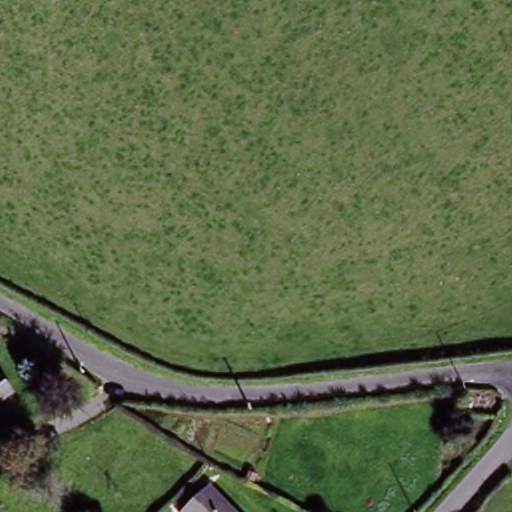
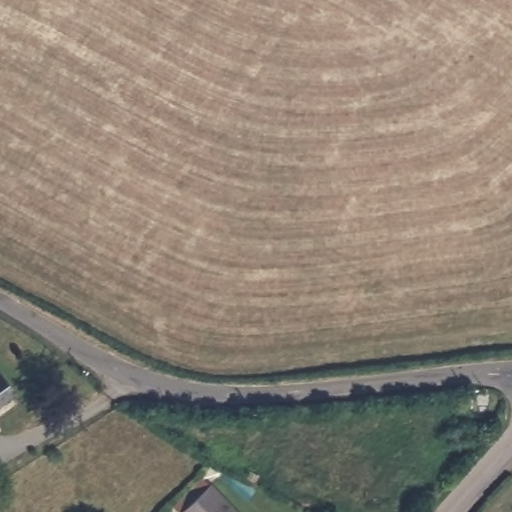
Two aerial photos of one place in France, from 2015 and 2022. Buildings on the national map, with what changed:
unchanged [(29,358),(21,352),(27,344),(35,350),(29,358)]
unchanged [(3,389),(0,391),(0,385),(3,389)]
unchanged [(204,484),(218,495),(238,512),(180,512),(204,484)]

